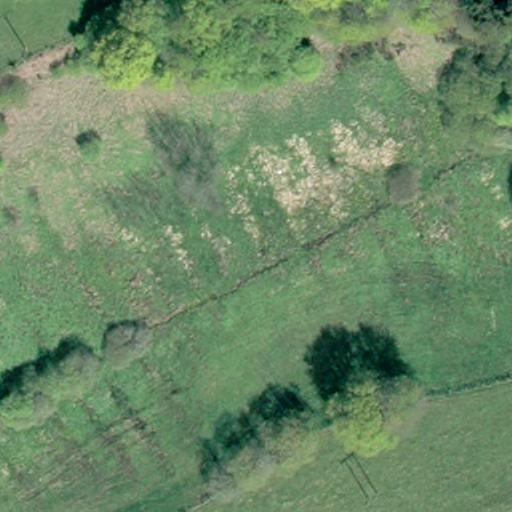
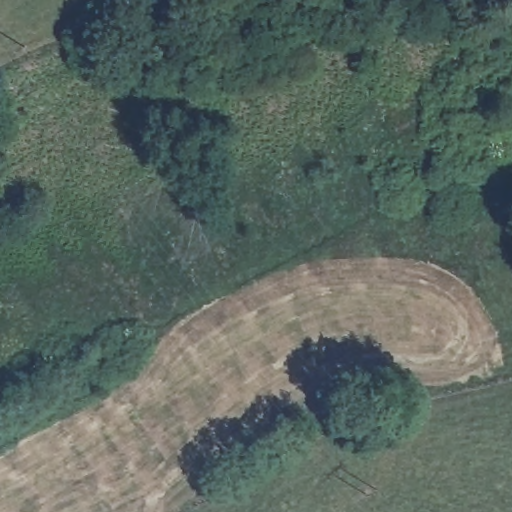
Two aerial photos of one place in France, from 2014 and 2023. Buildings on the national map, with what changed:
[]

